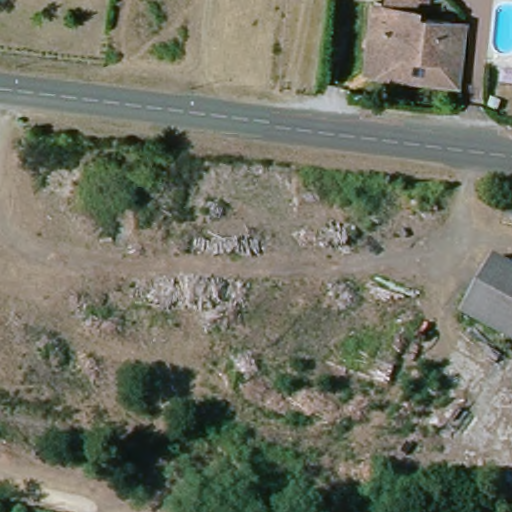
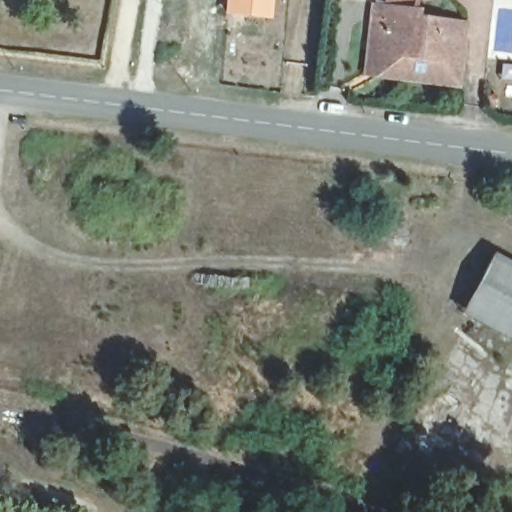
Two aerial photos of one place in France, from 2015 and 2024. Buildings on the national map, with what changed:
new [(275,0),(273,19),(225,15),(225,0),(275,0)]
unchanged [(375,0),(418,4),(417,14),(467,19),(460,82),(406,76),(410,45),(386,43),(387,24),(372,22),(375,0)]
unchanged [(406,76),(367,72),(372,22),(387,24),(386,43),(410,45),(406,76)]
unchanged [(512,269),(512,327),(468,302),(492,257),(512,269)]

